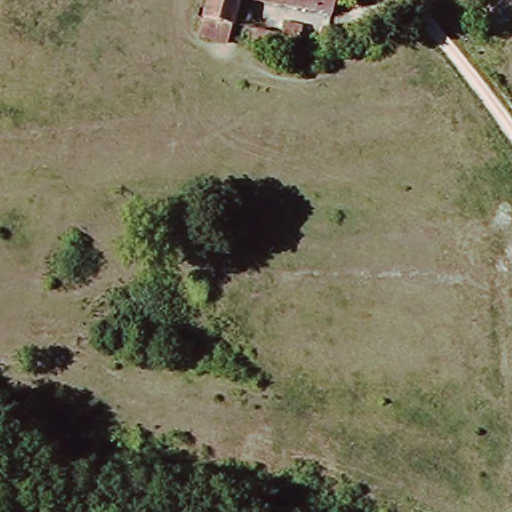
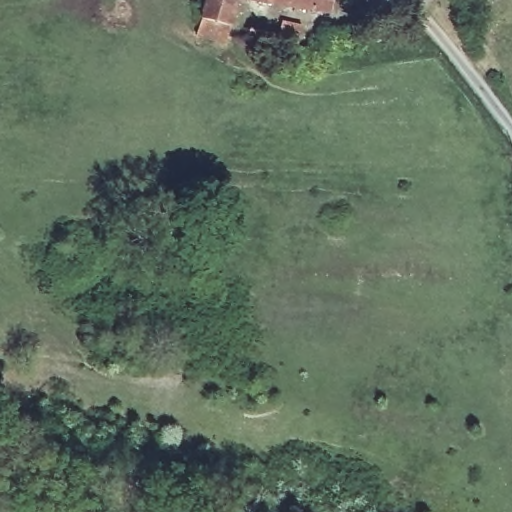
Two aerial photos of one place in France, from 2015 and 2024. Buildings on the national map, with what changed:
unchanged [(204,19),(210,0),(237,0),(224,58),(206,54),(210,31),(197,28),(198,19),(204,19)]
unchanged [(251,0),(334,0),(332,16),(251,0)]
unchanged [(294,57),(250,48),(252,35),(280,41),(283,25),(302,28),(294,57)]

